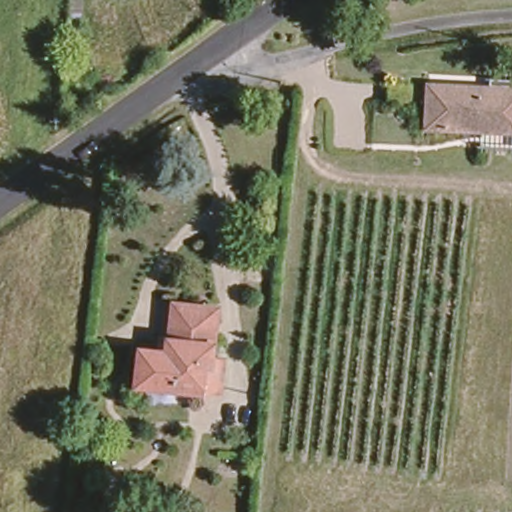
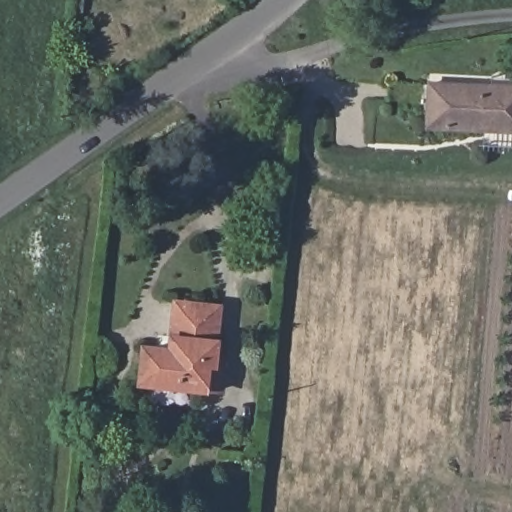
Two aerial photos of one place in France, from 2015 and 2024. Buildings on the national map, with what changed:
unchanged [(496,80),(512,81),(512,90),(496,89),(496,80)]
unchanged [(435,107),(396,105),(397,85),(421,87),(496,89),(512,90),(512,129),(493,128),(493,131),(434,129),(435,107)]
unchanged [(493,131),(493,128),(512,129),(512,150),(492,149),(493,131)]
unchanged [(151,386),(155,352),(182,356),(187,307),(229,311),(223,360),(234,362),(230,395),(151,386)]

